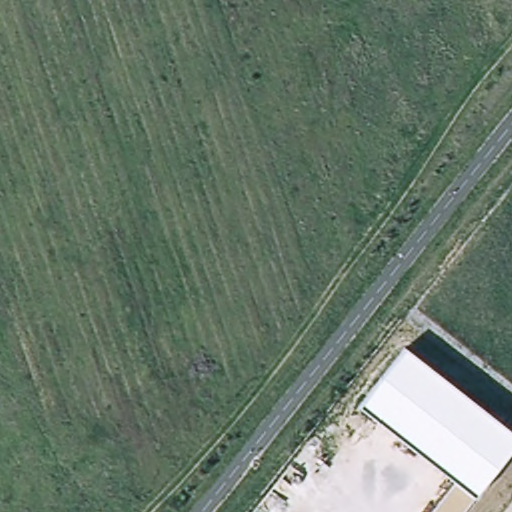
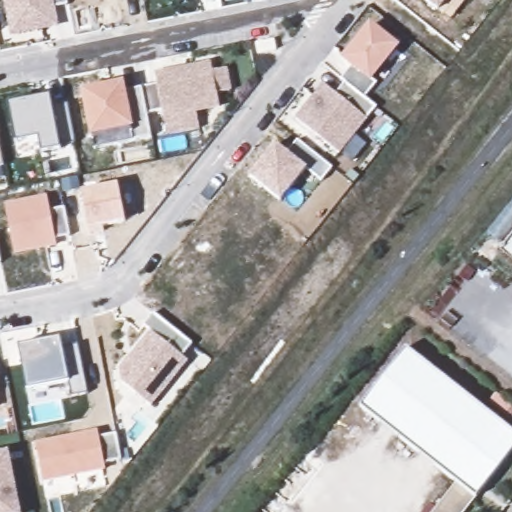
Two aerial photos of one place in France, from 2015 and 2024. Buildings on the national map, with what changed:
new [(56,8),(60,27),(12,37),(4,0),(67,0),(68,5),(56,8)]
new [(450,20),(440,13),(424,0),(466,0),(450,20)]
new [(340,154),(296,118),(324,84),(337,94),(346,84),(341,81),(352,68),(342,60),(370,23),(399,45),(370,81),(377,85),(367,97),(378,107),(368,120),(340,154)]
new [(94,136),(91,137),(82,90),(125,81),(126,91),(158,85),(156,73),(212,63),(213,72),(229,70),(232,92),(217,94),(220,108),(197,113),(200,128),(167,134),(162,111),(147,114),(151,138),(96,149),(94,136)]
new [(52,107),(68,106),(74,144),(61,150),(42,154),(39,138),(17,142),(10,104),(51,97),(52,107)]
new [(286,153),(297,140),(333,168),(323,181),(307,169),(282,201),(251,176),(276,142),(286,153)]
new [(0,167),(0,151),(3,166),(0,167)]
new [(125,222),(89,229),(81,191),(119,184),(125,222)]
new [(51,211),(64,208),(69,237),(57,240),(57,247),(15,255),(4,204),(47,195),(51,211)]
new [(499,251),(512,234),(512,262),(499,251)]
new [(145,325),(154,314),(193,345),(183,357),(188,362),(153,406),(121,381),(121,368),(152,332),(145,325)]
new [(62,350),(77,346),(87,393),(71,398),(68,382),(27,390),(18,346),(60,338),(62,350)]
unchanged [(359,408),(405,349),(512,432),(512,452),(476,498),(464,512),(434,512),(456,482),(359,408)]
new [(99,440),(117,434),(123,461),(106,465),(107,470),(44,482),(36,443),(97,430),(99,440)]
new [(20,512),(0,512),(0,454),(9,452),(20,512)]

